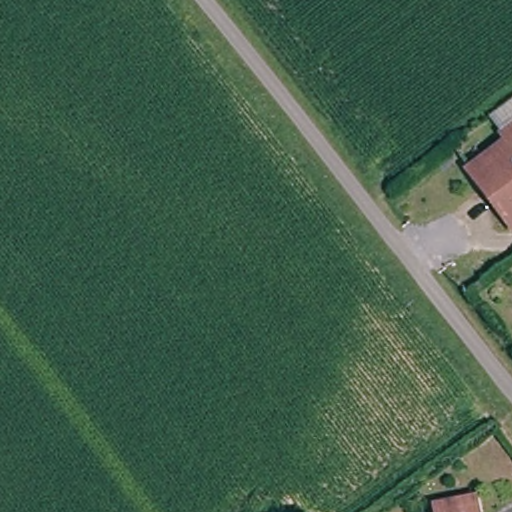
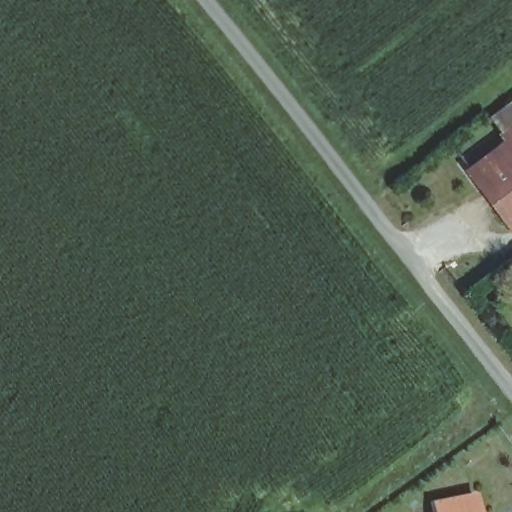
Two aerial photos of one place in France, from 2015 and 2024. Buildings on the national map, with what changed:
unchanged [(472,172),(509,144),(503,135),(512,128),(512,225),(484,189),(472,172)]
unchanged [(435,500),(476,490),(480,512),(437,512),(435,500)]

